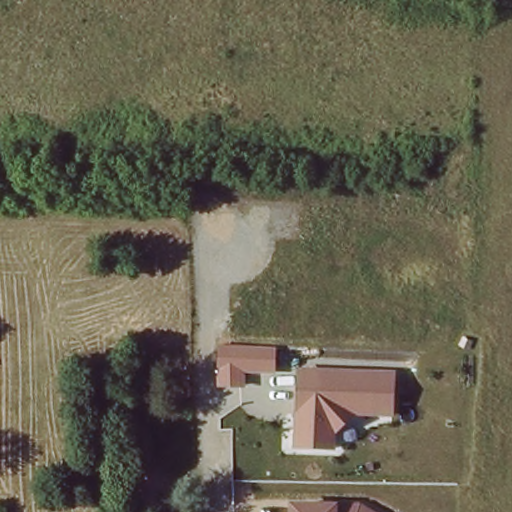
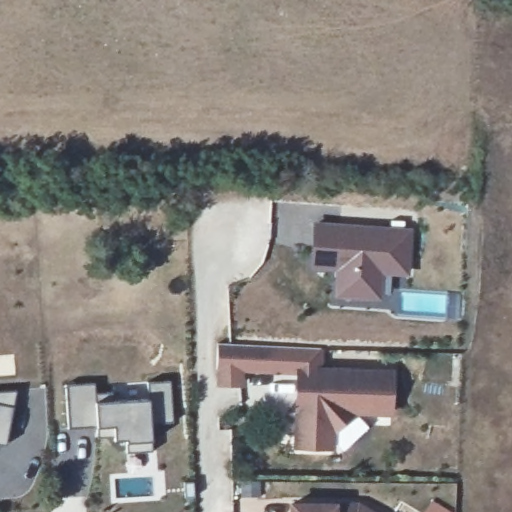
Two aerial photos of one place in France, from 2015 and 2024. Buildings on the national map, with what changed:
new [(313,221),(412,229),(409,275),(383,274),(381,300),(334,295),(335,270),(309,270),(313,221)]
unchanged [(246,373),(245,386),(218,385),(220,345),(276,348),(275,373),(246,373)]
unchanged [(393,417),(352,417),(335,434),(335,450),(295,448),(298,368),(394,370),(393,417)]
new [(98,384),(98,401),(153,400),(152,382),(173,382),(174,423),(159,423),(159,441),(156,441),(156,451),(132,451),(133,442),(136,442),(136,439),(124,439),(124,426),(116,426),(116,438),(102,438),(102,432),(97,432),(97,427),(72,427),(71,385),(98,384)]
new [(21,390),(12,444),(0,442),(0,392),(21,390)]
unchanged [(362,502),(377,512),(292,512),(293,502),(338,501),(362,502)]

